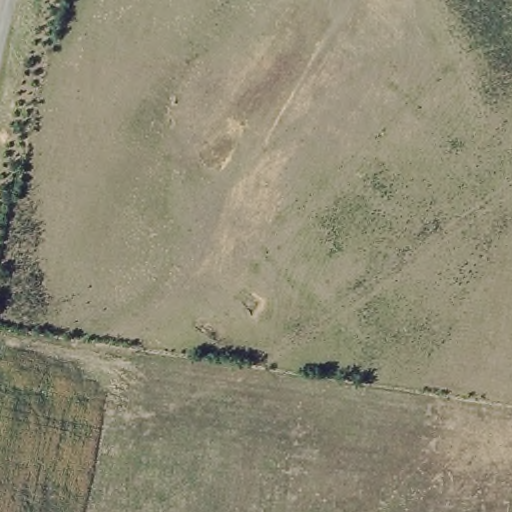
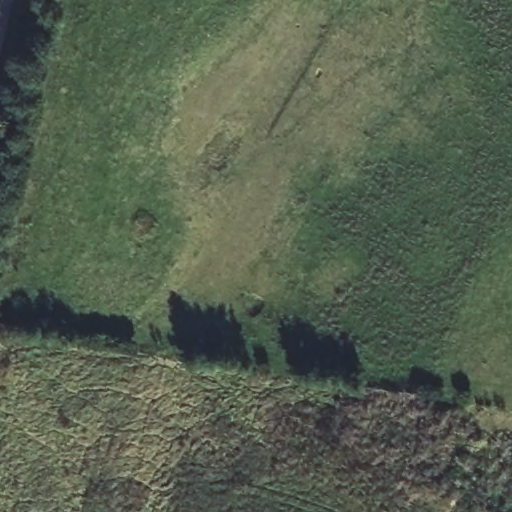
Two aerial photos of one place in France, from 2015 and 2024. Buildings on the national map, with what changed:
[]

